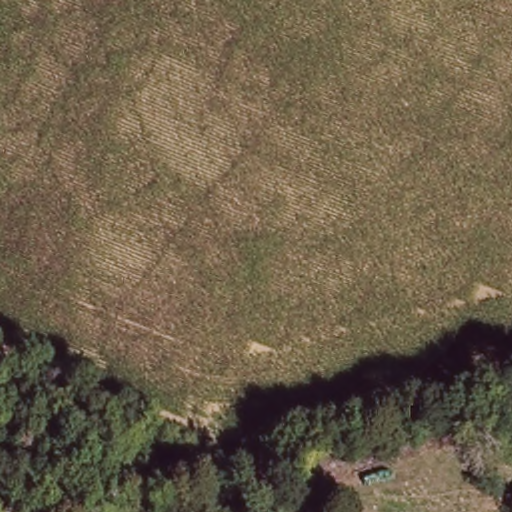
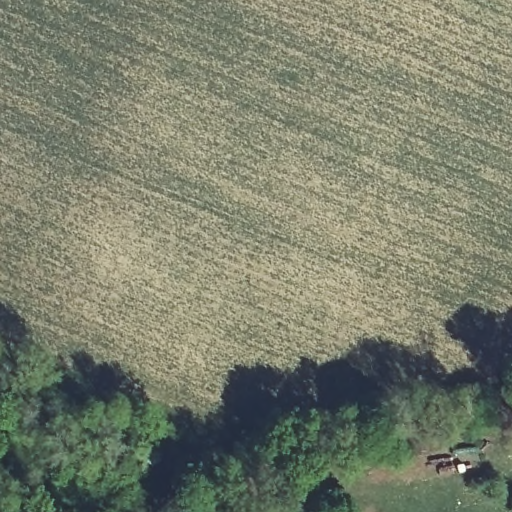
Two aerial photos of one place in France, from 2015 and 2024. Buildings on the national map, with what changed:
[]

